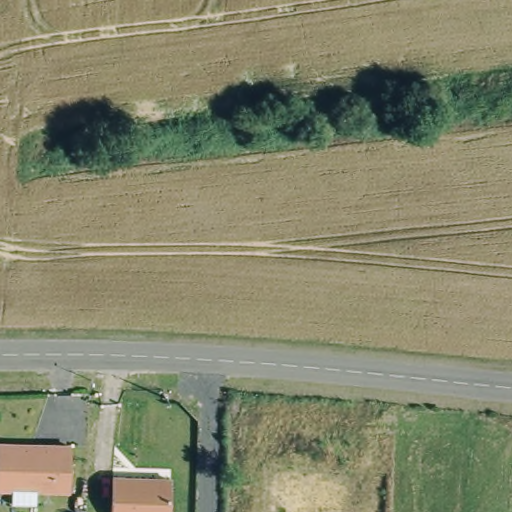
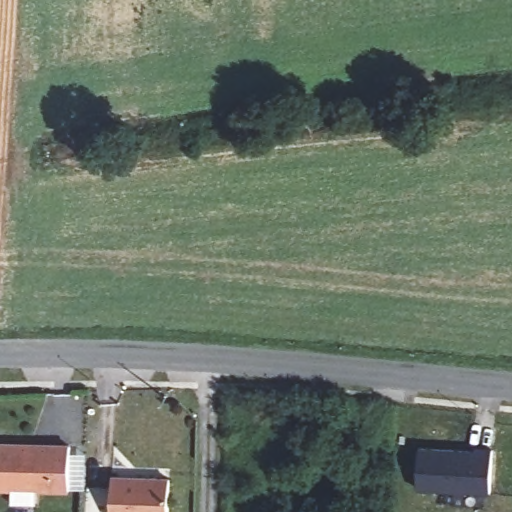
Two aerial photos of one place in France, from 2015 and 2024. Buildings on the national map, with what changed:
unchanged [(1,442),(77,445),(76,488),(42,487),(42,502),(18,501),(18,487),(0,486),(1,442)]
new [(427,492),(425,489),(416,489),(419,446),(493,450),(490,493),(427,492)]
unchanged [(176,478),(174,512),(117,512),(119,476),(176,478)]

